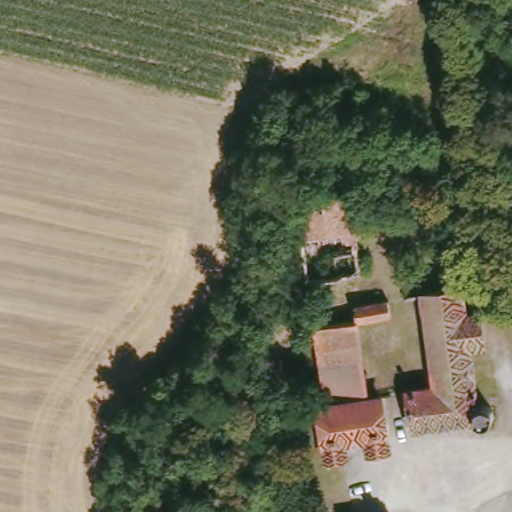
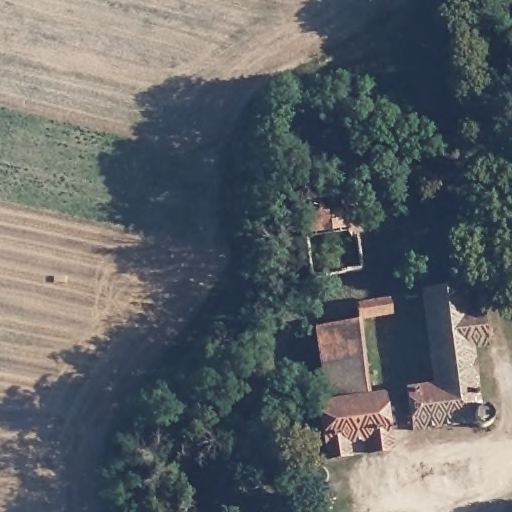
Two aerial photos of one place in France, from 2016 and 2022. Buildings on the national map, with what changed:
unchanged [(306,111),(289,154),(268,146),(284,103),(306,111)]
unchanged [(353,190),(364,267),(311,274),(303,197),(353,190)]
unchanged [(411,393),(437,390),(424,297),(468,290),(472,319),(484,317),(488,349),(475,351),(483,412),(489,412),(494,417),(496,422),(494,427),(491,431),(484,432),(481,431),(476,427),(416,432),(411,393)]
unchanged [(358,306),(393,302),(394,317),(359,322),(358,306)]
unchanged [(371,399),(384,397),(392,452),(329,460),(323,404),(329,403),(321,327),(359,322),(371,399)]

